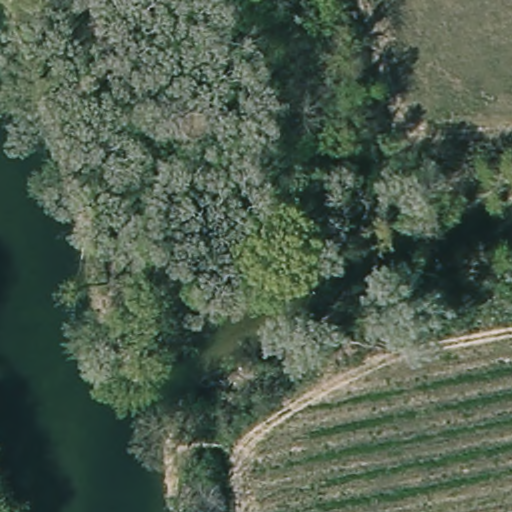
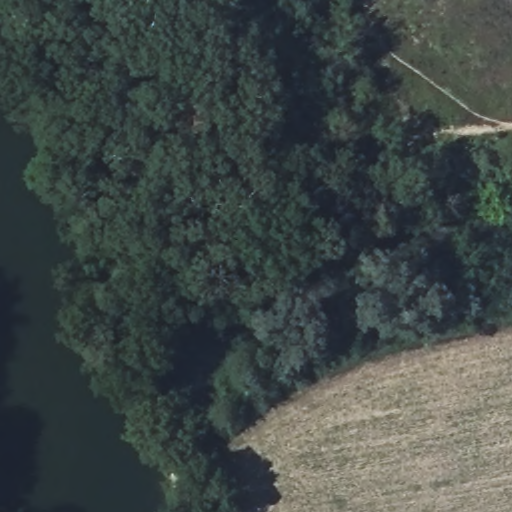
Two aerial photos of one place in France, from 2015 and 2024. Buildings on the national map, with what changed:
unchanged [(255,110),(248,116),(237,118),(229,113),(225,105),(224,94),(226,87),(229,84),(236,80),(241,80),(245,81),(248,83),(254,88),(257,91),(259,103),(255,110)]

